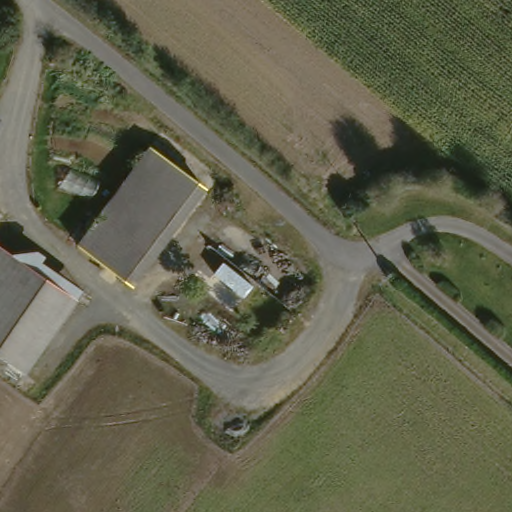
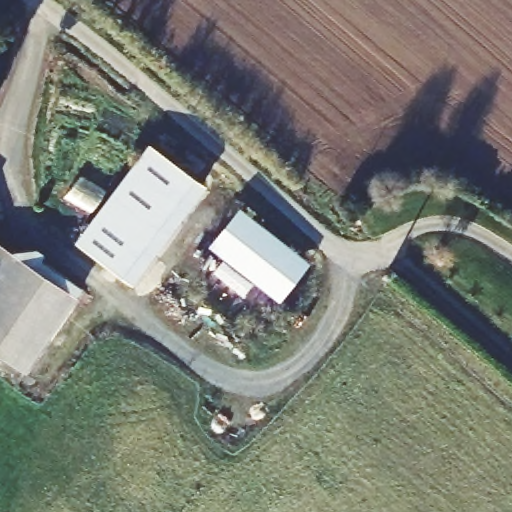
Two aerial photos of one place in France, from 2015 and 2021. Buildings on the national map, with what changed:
unchanged [(124,270),(82,239),(151,142),(196,175),(124,270)]
new [(232,198),(312,259),(282,299),(202,238),(232,198)]
unchanged [(29,375),(0,357),(0,250),(77,299),(29,375)]

